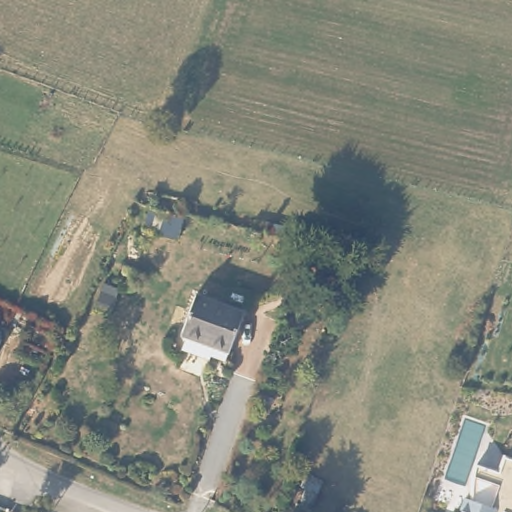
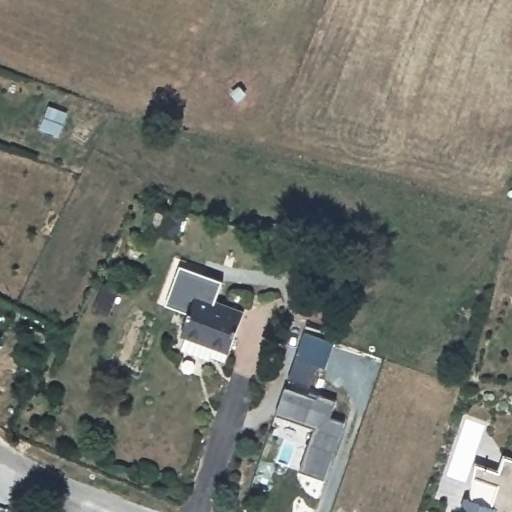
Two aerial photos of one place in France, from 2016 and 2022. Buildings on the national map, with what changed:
new [(166,303),(180,265),(224,280),(218,297),(201,290),(191,313),(166,303)]
unchanged [(210,356),(206,353),(182,344),(187,332),(183,331),(201,290),(223,299),(246,309),(242,317),(229,350),(226,358),(212,352),(210,356)]
unchanged [(0,345),(0,339),(3,341),(0,345)]
new [(275,415),(286,387),(335,404),(331,417),(347,422),(325,482),(299,472),(315,428),(275,415)]
unchanged [(506,456),(512,458),(512,512),(459,512),(467,494),(474,497),(474,476),(477,463),(500,471),(506,456)]

